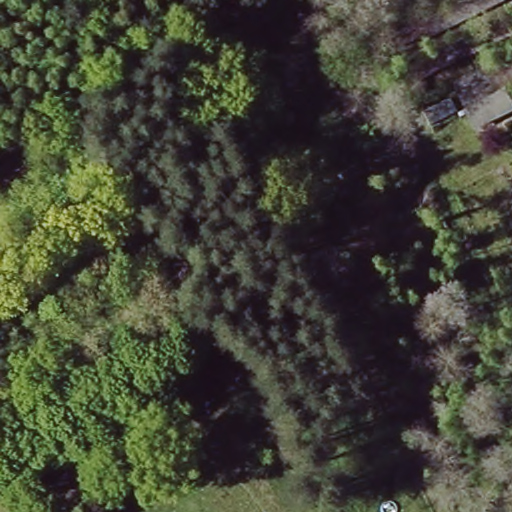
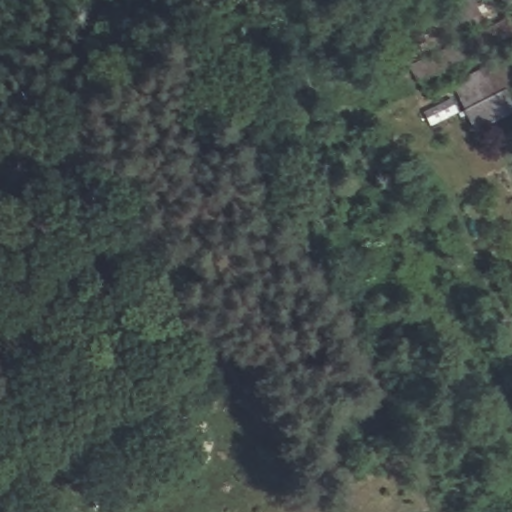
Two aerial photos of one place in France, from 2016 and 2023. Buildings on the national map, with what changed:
unchanged [(471,0),(502,0),(506,7),(403,57),(392,42),(471,0)]
unchanged [(410,70),(510,24),(512,28),(512,43),(421,85),(410,70)]
unchanged [(477,130),(452,89),(512,52),(512,84),(502,89),(512,105),(512,119),(477,130)]

